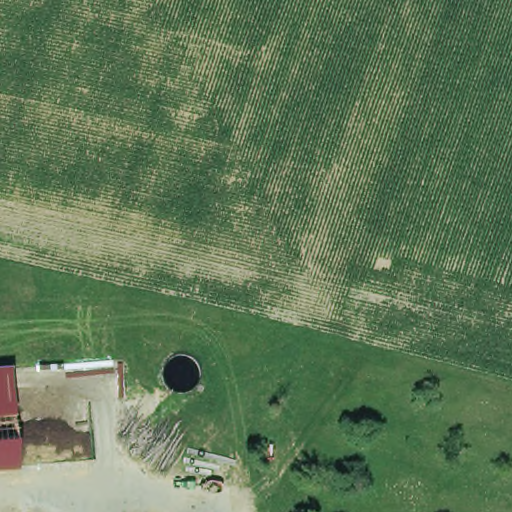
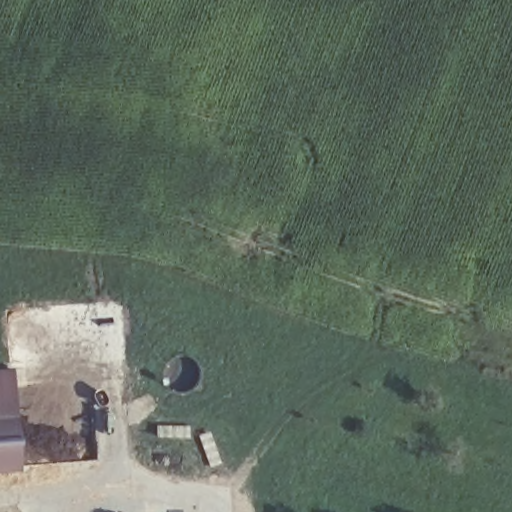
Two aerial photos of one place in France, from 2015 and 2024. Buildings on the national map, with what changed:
unchanged [(8,371),(11,466),(0,466),(0,371),(8,371)]

